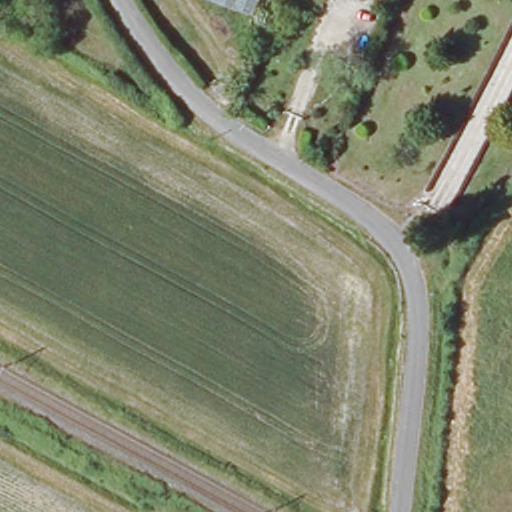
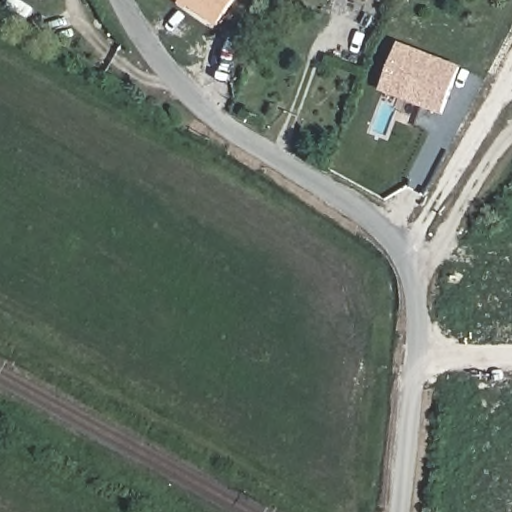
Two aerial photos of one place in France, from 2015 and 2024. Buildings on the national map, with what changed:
new [(176,0),(234,0),(215,27),(176,0)]
new [(380,89),(398,44),(460,68),(442,113),(380,89)]

